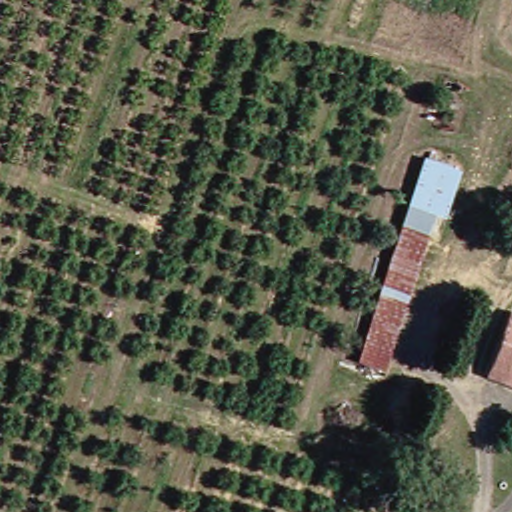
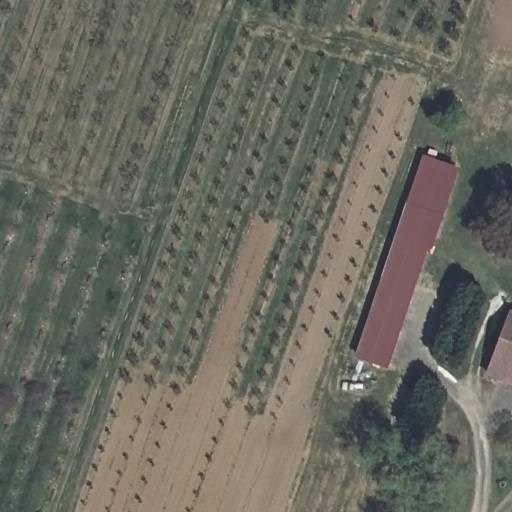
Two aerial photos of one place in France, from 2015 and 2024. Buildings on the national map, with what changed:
unchanged [(423,151),(463,163),(446,212),(434,209),(386,361),(357,354),(423,151)]
unchanged [(509,311),(512,312),(512,356),(492,350),(509,311)]
unchanged [(482,372),(492,350),(512,356),(512,384),(492,376),(482,372)]

